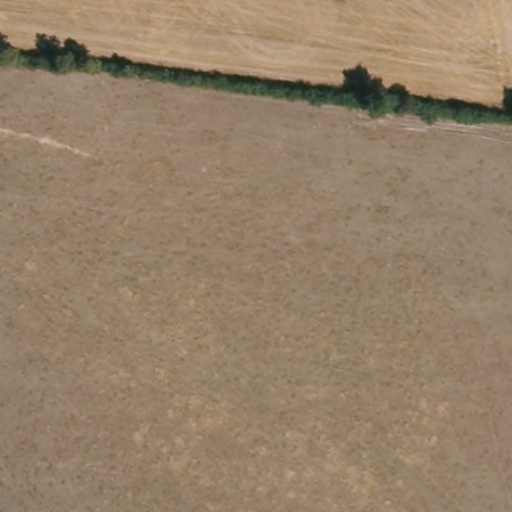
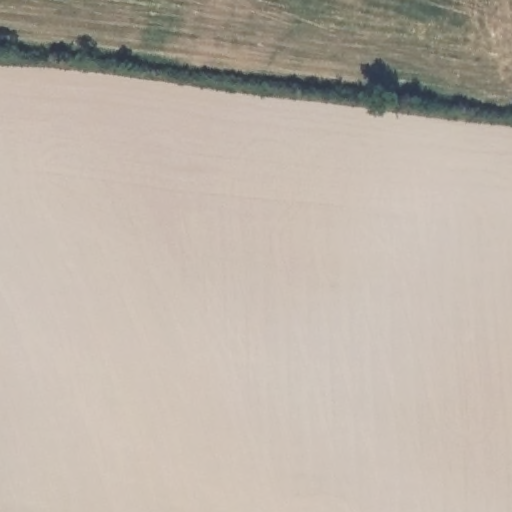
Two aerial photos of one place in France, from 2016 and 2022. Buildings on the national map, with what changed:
[]

